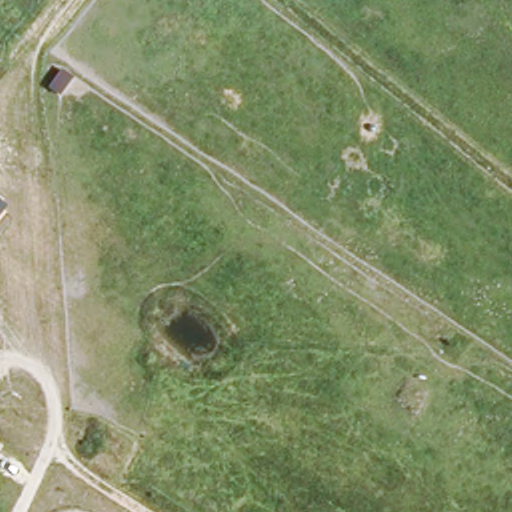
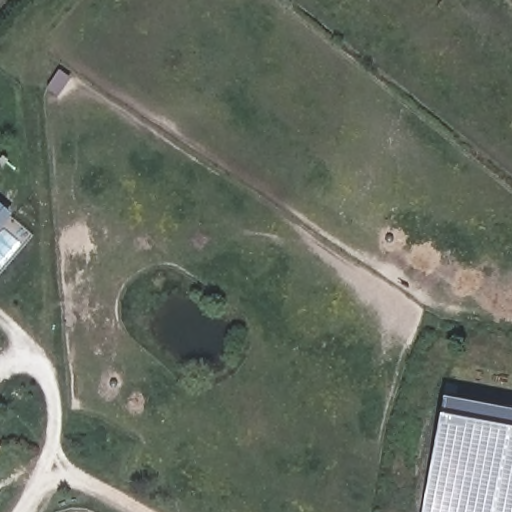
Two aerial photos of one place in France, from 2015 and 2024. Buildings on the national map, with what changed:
unchanged [(0,205),(3,207),(0,211),(0,205)]
new [(445,396),(512,409),(512,512),(421,512),(445,396)]
unchanged [(0,458),(0,449),(5,451),(0,458)]

